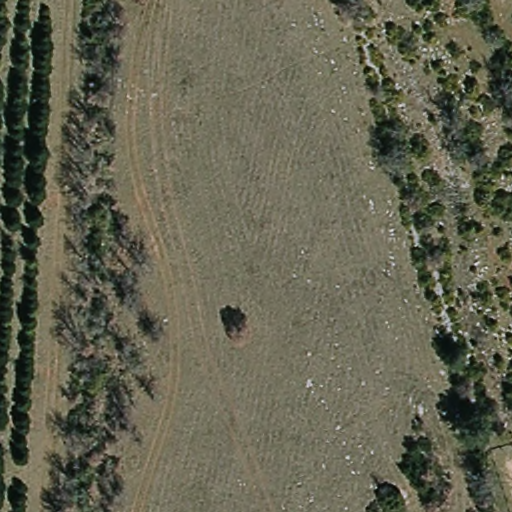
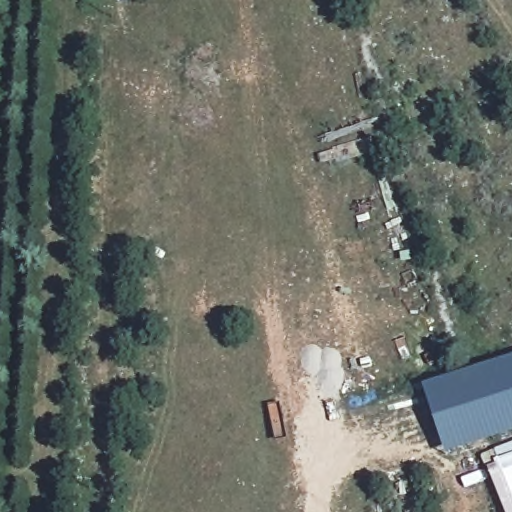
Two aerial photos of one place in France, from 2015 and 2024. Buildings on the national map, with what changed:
new [(512,359),(512,436),(448,459),(424,389),(512,359)]
new [(505,512),(488,470),(497,466),(495,463),(499,461),(496,451),(512,445),(512,512),(505,512)]

